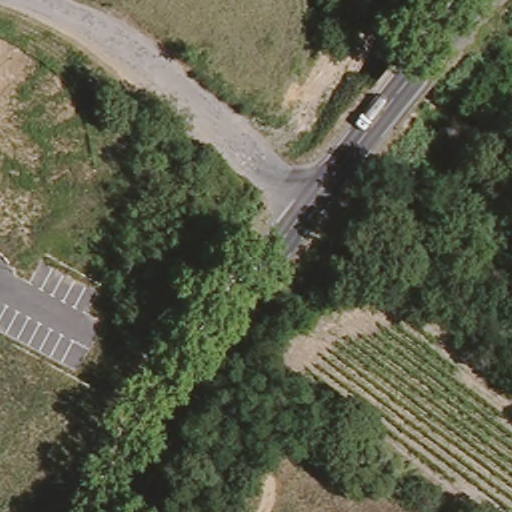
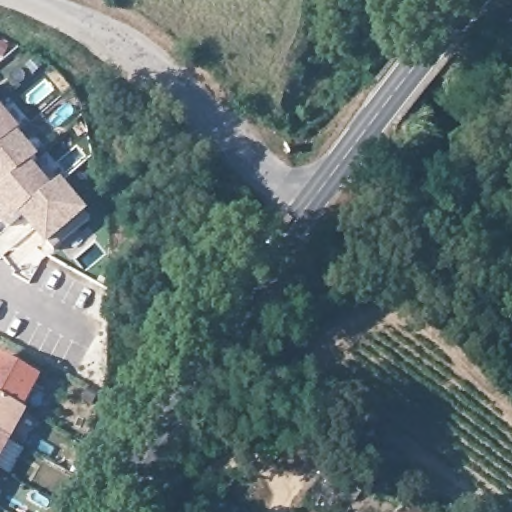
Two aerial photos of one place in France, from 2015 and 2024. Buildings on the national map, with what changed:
new [(0,149),(0,109),(2,106),(22,130),(0,149)]
new [(32,166),(0,192),(0,150),(20,133),(40,159),(32,166)]
new [(51,171),(62,181),(90,214),(88,217),(92,222),(56,251),(52,247),(50,249),(23,216),(7,228),(0,219),(0,214),(3,212),(0,208),(0,192),(32,166),(44,177),(51,171)]
new [(20,407),(0,396),(0,354),(37,374),(20,407)]
new [(0,433),(0,397),(23,409),(8,437),(0,452),(0,433)]
unchanged [(232,485),(222,498),(212,489),(222,477),(232,485)]

